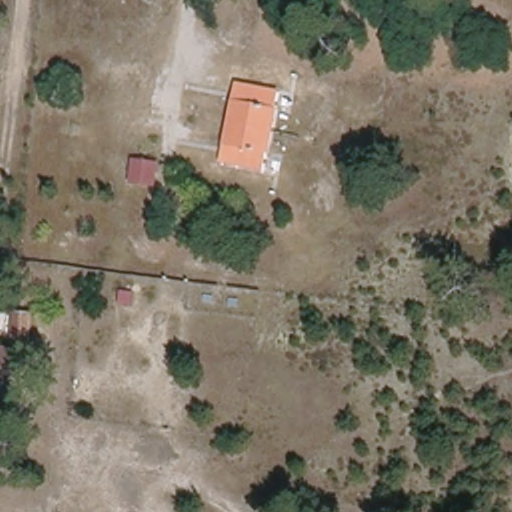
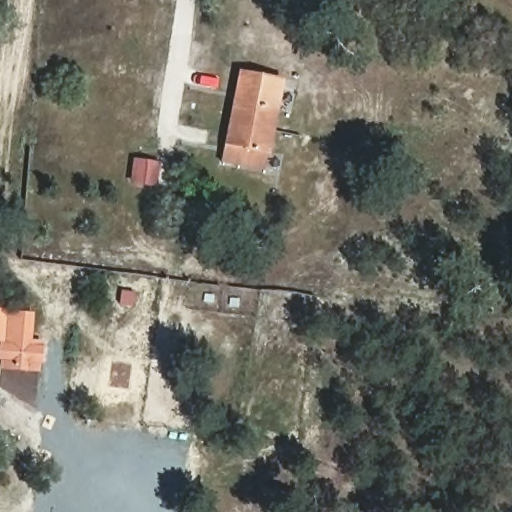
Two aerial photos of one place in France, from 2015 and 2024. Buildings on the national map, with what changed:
unchanged [(279,92),(260,170),(229,164),(247,86),(279,92)]
unchanged [(156,188),(131,185),(135,157),(160,162),(156,188)]
new [(45,342),(45,372),(0,370),(0,343),(0,308),(35,309),(34,342),(45,342)]

